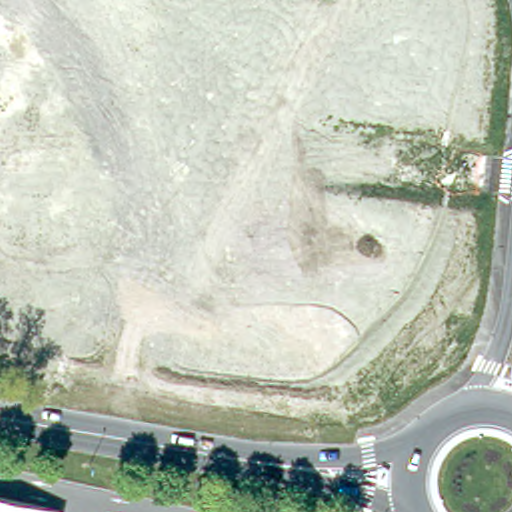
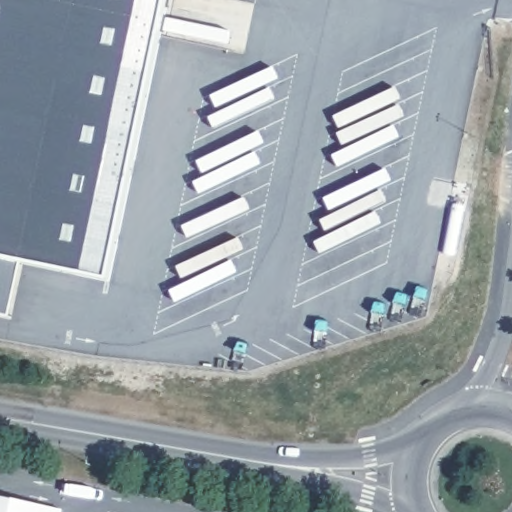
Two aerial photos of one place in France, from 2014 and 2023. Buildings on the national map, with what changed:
new [(110,280),(22,264),(14,317),(0,314),(0,0),(168,0),(110,280)]

